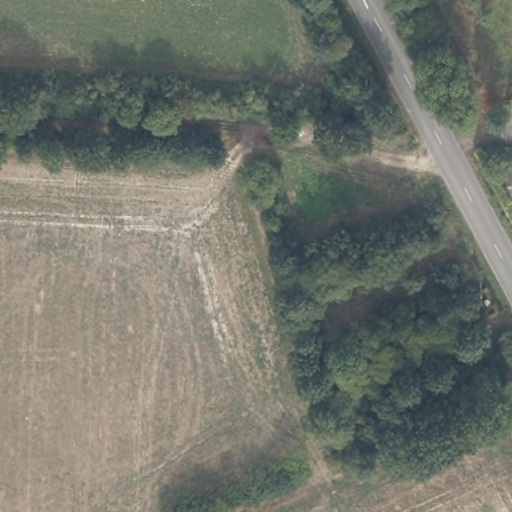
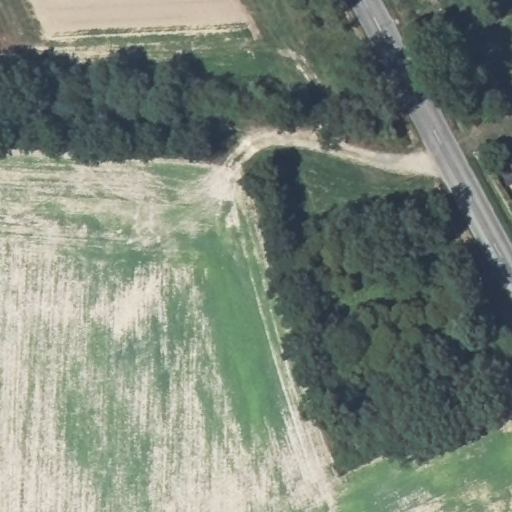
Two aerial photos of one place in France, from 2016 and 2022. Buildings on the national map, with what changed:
unchanged [(512,143),(512,167),(502,149),(512,143)]

